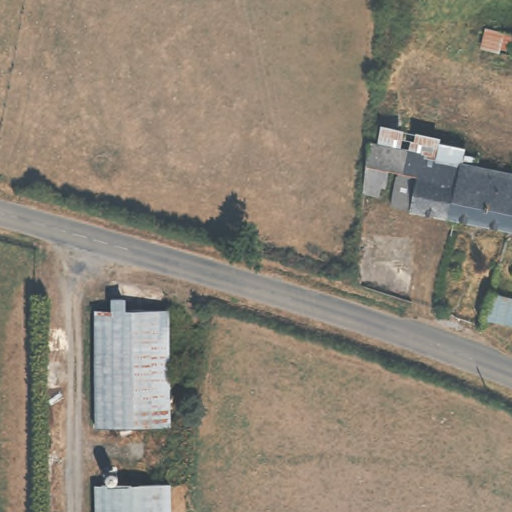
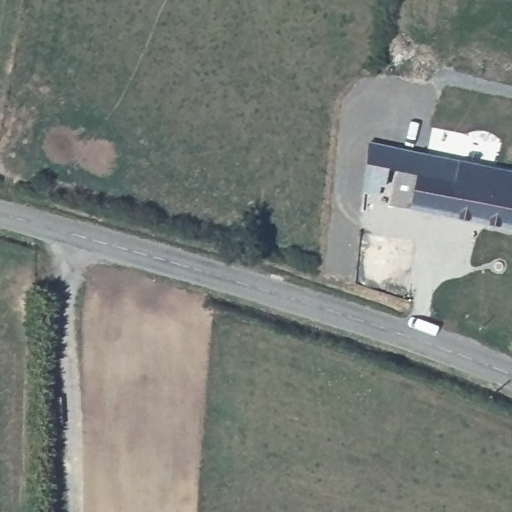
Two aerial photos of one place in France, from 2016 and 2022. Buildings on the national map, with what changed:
unchanged [(458,160),(446,214),(391,202),(398,169),(387,167),(384,182),(378,181),(376,190),(362,187),(367,140),(380,142),(458,160)]
unchanged [(493,191),(512,195),(512,229),(508,229),(456,216),(446,214),(458,160),(465,162),(498,169),(493,191)]
unchanged [(498,169),(512,171),(512,195),(493,191),(498,169)]
demolished [(488,322),(495,293),(497,294),(512,298),(512,328),(506,327),(488,322)]
demolished [(170,512),(99,512),(99,318),(112,318),(112,304),(127,304),(127,317),(171,318),(170,512)]
new [(164,310),(167,432),(94,432),(94,310),(164,310)]
new [(170,512),(99,512),(99,484),(170,484),(170,512)]

